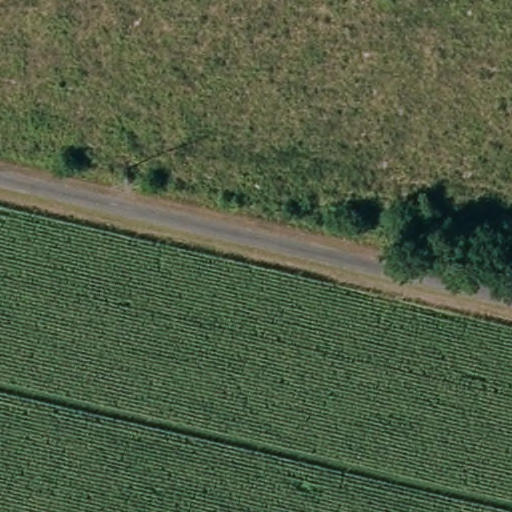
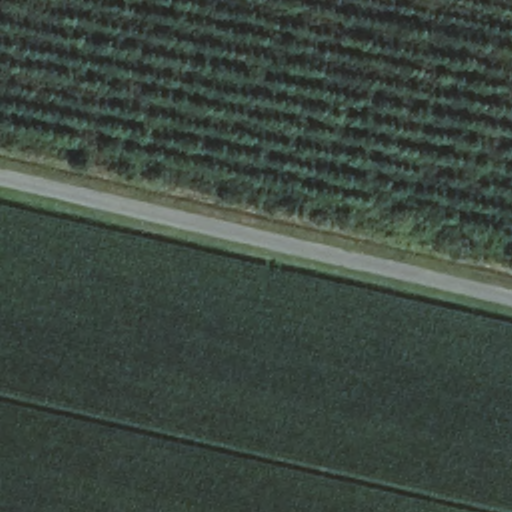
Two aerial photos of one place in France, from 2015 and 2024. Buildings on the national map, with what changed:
[]

